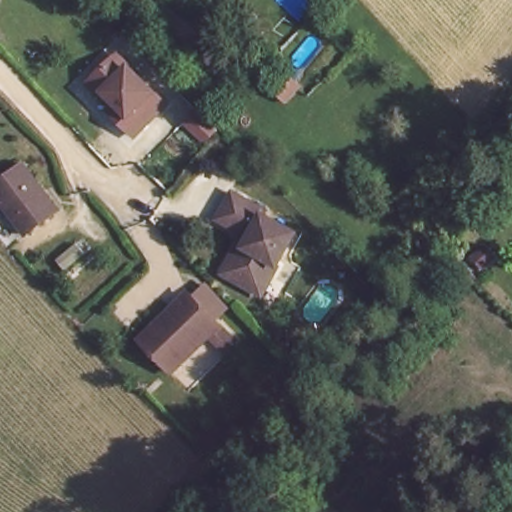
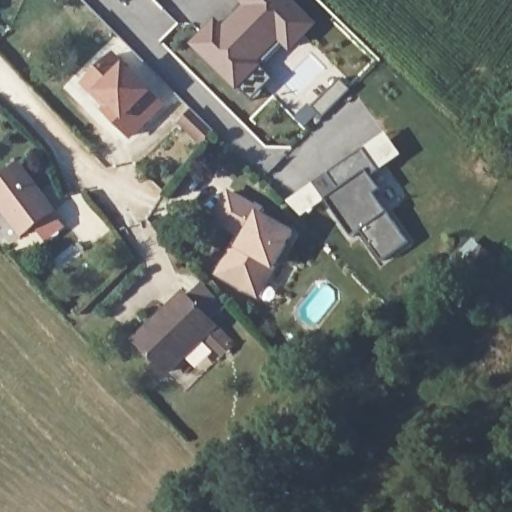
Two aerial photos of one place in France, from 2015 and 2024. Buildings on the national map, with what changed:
new [(284,45),(260,67),(273,79),(253,100),(240,88),(238,90),(192,45),(216,19),(225,25),(244,5),(238,0),(292,0),(317,24),(290,51),(284,45)]
unchanged [(163,101),(131,132),(106,107),(109,104),(86,80),(89,76),(115,51),(163,101)]
demolished [(220,85),(203,67),(217,55),(234,71),(220,85)]
new [(179,121),(191,109),(211,130),(199,141),(179,121)]
new [(350,236),(315,183),(363,150),(378,170),(370,175),(379,189),(373,192),(407,242),(380,260),(360,230),(350,236)]
unchanged [(55,206),(24,231),(0,202),(0,174),(18,160),(55,206)]
unchanged [(251,285),(220,270),(235,239),(241,241),(246,231),(211,215),(224,188),(258,205),(256,208),(292,225),(269,270),(260,289),(251,285)]
new [(480,246),(490,257),(480,267),(469,257),(480,246)]
unchanged [(222,350),(204,332),(168,370),(135,338),(181,290),(214,321),(233,339),(222,350)]

